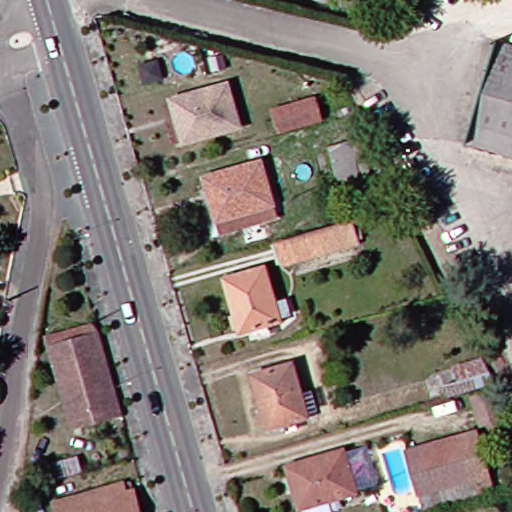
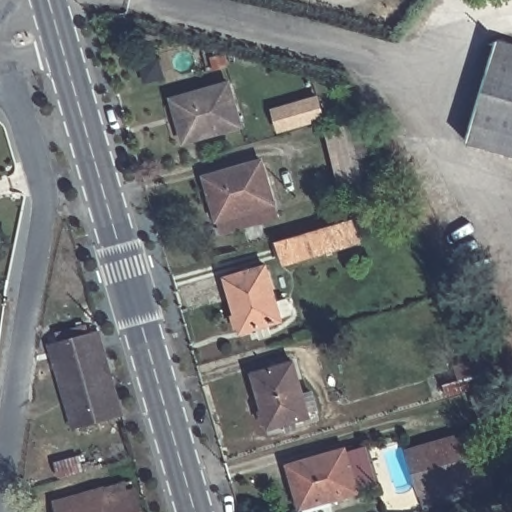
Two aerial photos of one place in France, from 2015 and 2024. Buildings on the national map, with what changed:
unchanged [(491,41),(512,47),(512,157),(461,142),(491,41)]
unchanged [(233,122),(177,140),(170,118),(175,117),(169,96),(220,81),(233,122)]
unchanged [(315,115),(275,127),(268,107),(309,95),(315,115)]
unchanged [(352,173),(337,177),(326,137),(342,134),(352,173)]
unchanged [(212,231),(208,217),(203,197),(210,195),(203,174),(254,159),(266,202),(269,215),(212,231)]
unchanged [(347,220),(352,239),(280,261),(274,241),(347,220)]
unchanged [(263,265),(277,318),(238,329),(236,325),(233,322),(231,316),(232,309),(223,276),(263,265)]
unchanged [(104,411),(72,421),(72,419),(64,422),(42,342),(49,340),(81,331),(91,327),(99,356),(106,379),(114,407),(104,411)]
unchanged [(301,413),(259,425),(260,422),(257,421),(254,417),(253,414),(253,411),(255,408),(245,372),(285,360),(301,413)]
unchanged [(486,388),(439,402),(436,393),(452,388),(449,375),(475,367),(486,388)]
unchanged [(491,426),(468,432),(462,404),(484,398),(491,426)]
unchanged [(411,498),(400,457),(470,437),(482,480),(411,498)]
unchanged [(348,490),(292,506),(285,483),(289,482),(284,462),(336,448),(348,490)]
unchanged [(54,463),(78,456),(87,453),(91,468),(81,471),(57,478),(54,463)]
unchanged [(486,492),(415,512),(411,498),(482,480),(486,492)]
unchanged [(54,512),(54,511),(51,502),(110,485),(122,482),(131,512),(54,512)]

